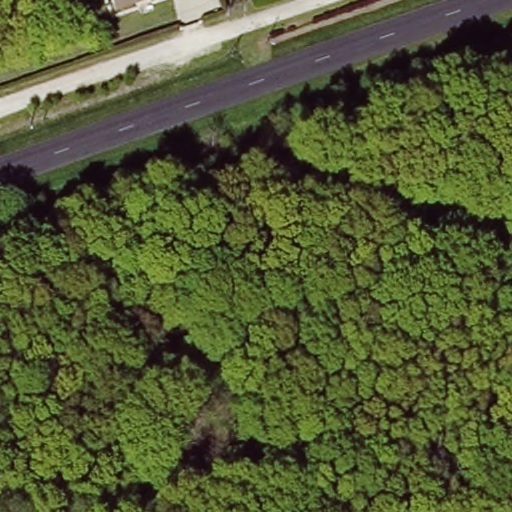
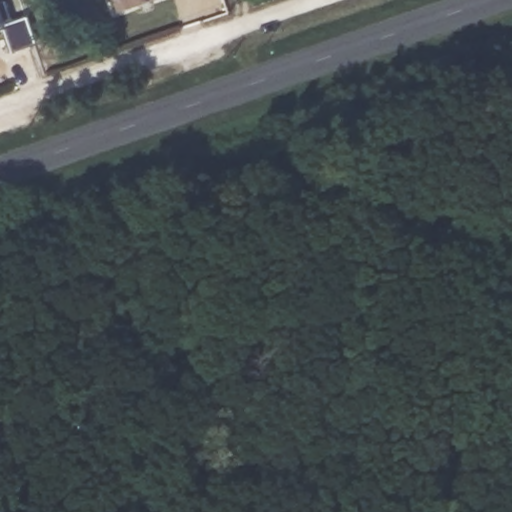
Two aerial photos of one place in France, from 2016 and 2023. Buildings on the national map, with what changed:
new [(10,20),(26,15),(32,43),(10,49),(5,27),(0,29),(0,1),(5,0),(10,20)]
unchanged [(110,0),(148,0),(113,10),(110,0)]

